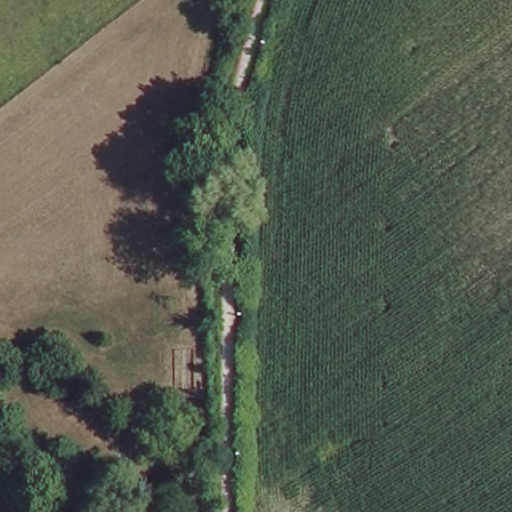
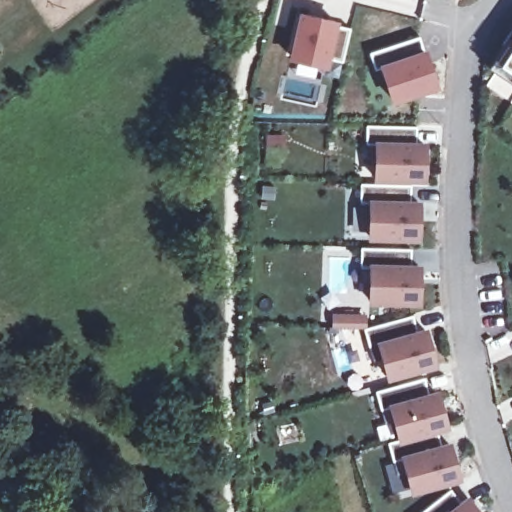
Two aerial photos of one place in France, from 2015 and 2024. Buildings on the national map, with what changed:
new [(336,23),(336,27),(351,30),(343,64),(327,60),(326,67),(292,58),(302,15),(336,23)]
new [(395,103),(384,70),(376,73),(371,56),(420,41),(425,56),(427,55),(437,89),(395,103)]
new [(512,69),(500,61),(512,42),(512,69)]
new [(366,123),(417,125),(416,143),(425,143),(424,178),(375,177),(376,143),(366,143),(366,123)]
new [(361,182),(412,183),(411,201),(420,201),(419,236),(370,235),(371,201),(361,201),(361,182)]
new [(362,245),(412,247),(412,265),(420,265),(419,300),(370,299),(371,265),(361,265),(362,245)]
new [(413,313),(418,331),(426,329),(435,362),(388,375),(380,342),(370,344),(365,326),(413,313)]
new [(425,376),(430,393),(437,391),(446,424),(437,427),(400,437),(391,404),(381,406),(377,389),(425,376)]
new [(400,437),(437,427),(442,444),(450,442),(458,475),(412,488),(403,455),(393,458),(389,440),(400,437)]
unchanged [(201,482),(201,512),(188,512),(188,482),(201,482)]
new [(465,499),(471,494),(485,512),(419,512),(453,485),(465,499)]

